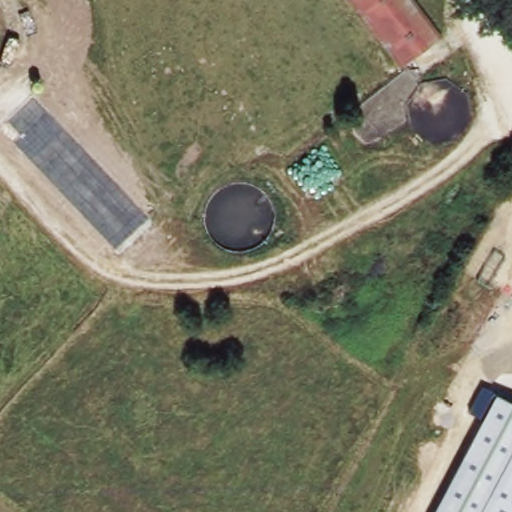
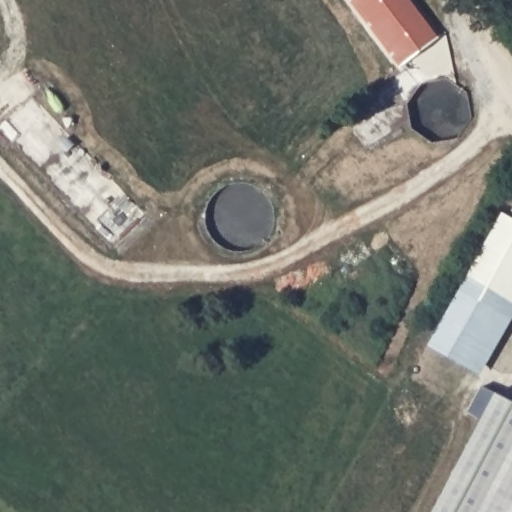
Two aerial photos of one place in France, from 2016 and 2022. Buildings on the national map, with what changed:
unchanged [(445,36),(405,66),(355,0),(417,0),(445,36)]
new [(427,347),(503,216),(512,221),(512,287),(503,301),(512,307),(512,319),(480,376),(427,347)]
unchanged [(466,412),(478,387),(495,394),(512,403),(512,512),(433,512),(482,418),(466,412)]

